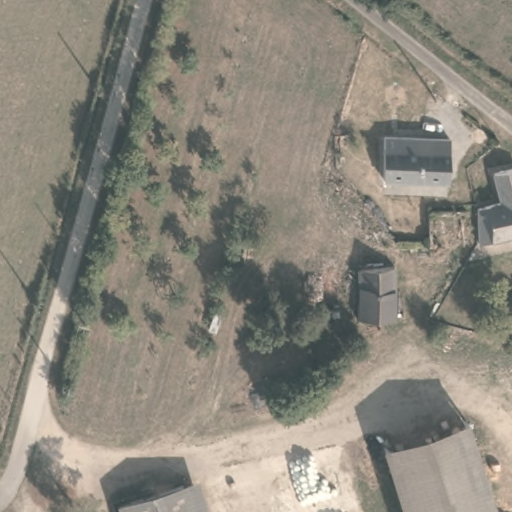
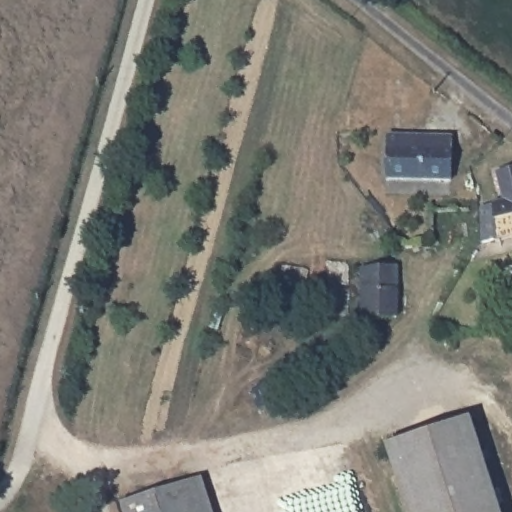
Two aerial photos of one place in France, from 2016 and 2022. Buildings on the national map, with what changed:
unchanged [(385,181),(385,139),(452,140),(452,157),(442,156),(442,181),(423,181),(385,181)]
unchanged [(512,166),(512,237),(483,243),(483,204),(502,201),(496,169),(512,166)]
unchanged [(399,321),(361,320),(361,263),(398,264),(399,321)]
unchanged [(388,442),(471,418),(498,512),(409,512),(388,442)]
unchanged [(213,481),(223,512),(149,512),(145,502),(197,484),(213,481)]
unchanged [(145,502),(149,512),(116,512),(145,502)]

